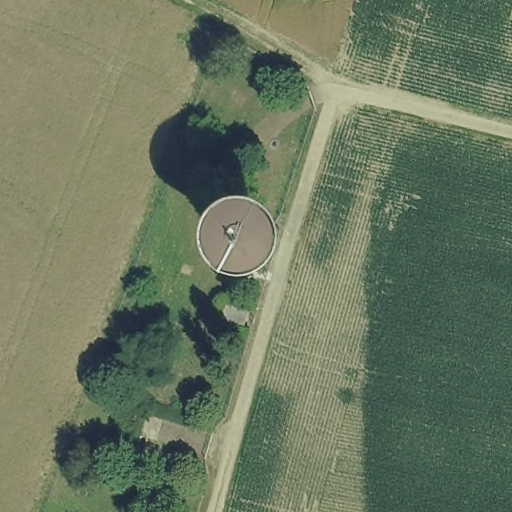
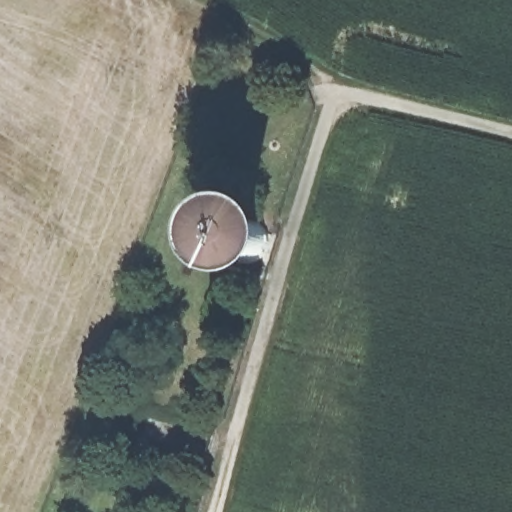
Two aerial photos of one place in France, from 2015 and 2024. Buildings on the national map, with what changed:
unchanged [(237,323),(222,318),(228,302),(243,308),(237,323)]

